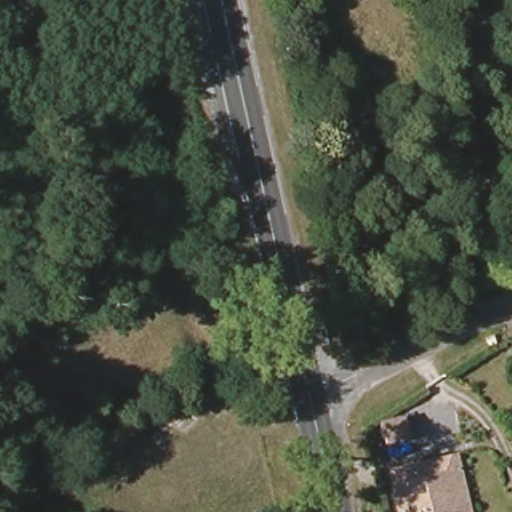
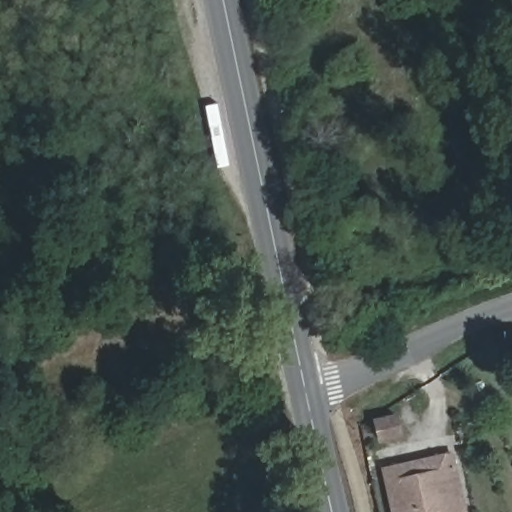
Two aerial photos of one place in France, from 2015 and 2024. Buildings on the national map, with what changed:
unchanged [(401,436),(379,441),(375,422),(396,417),(401,436)]
unchanged [(464,512),(393,512),(387,483),(384,470),(438,458),(451,455),(464,512)]

